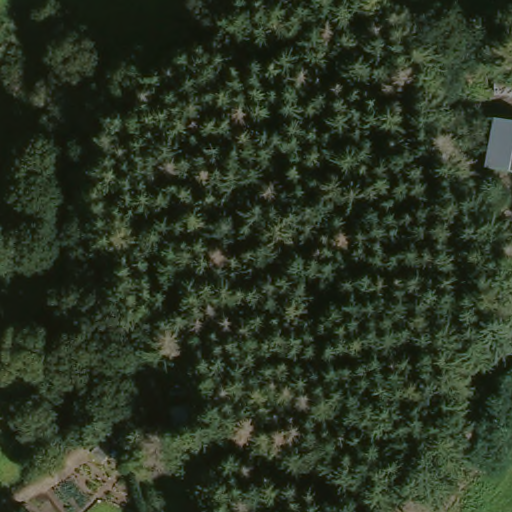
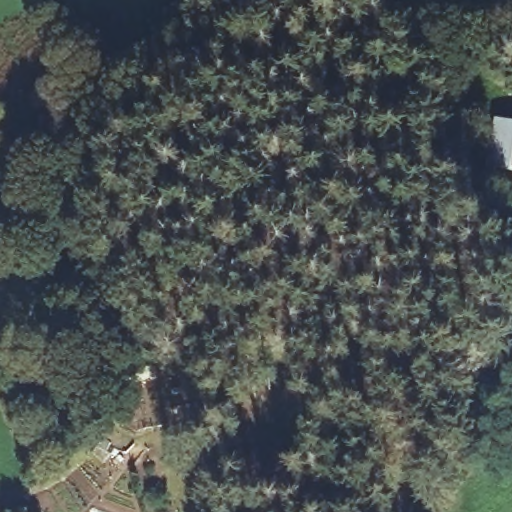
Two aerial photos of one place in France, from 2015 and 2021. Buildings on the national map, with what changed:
unchanged [(512,170),(491,164),(506,116),(512,118),(512,170)]

